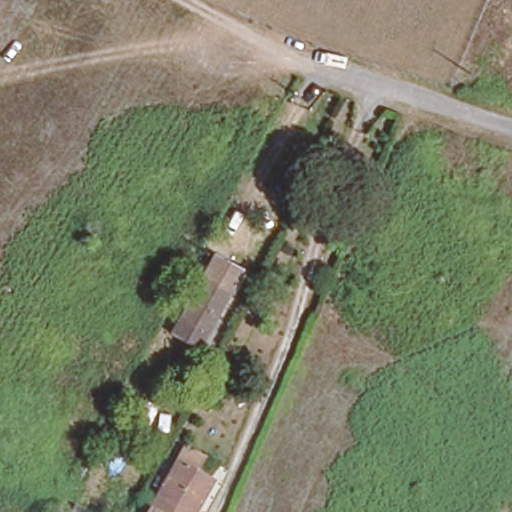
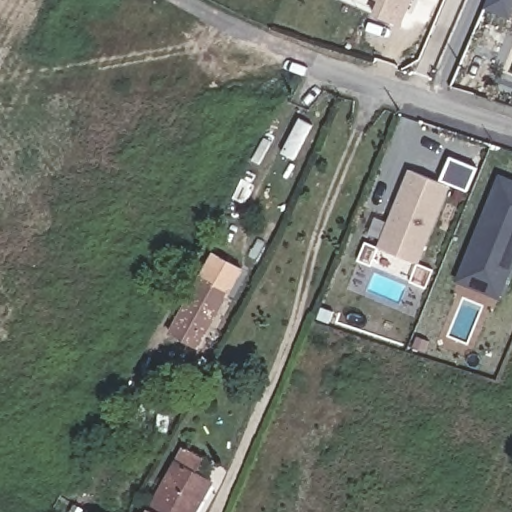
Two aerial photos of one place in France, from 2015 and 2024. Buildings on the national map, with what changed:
new [(398,25),(373,14),(379,0),(409,0),(398,25)]
new [(507,16),(484,6),(487,0),(512,0),(512,5),(507,16)]
new [(447,158),(474,169),(467,187),(440,177),(447,158)]
new [(409,170),(448,185),(416,263),(378,247),(409,170)]
new [(496,182),(512,188),(512,264),(501,290),(460,273),(496,182)]
unchanged [(195,345),(172,330),(213,258),(238,272),(195,345)]
unchanged [(214,478),(197,512),(144,512),(172,456),(214,478)]

